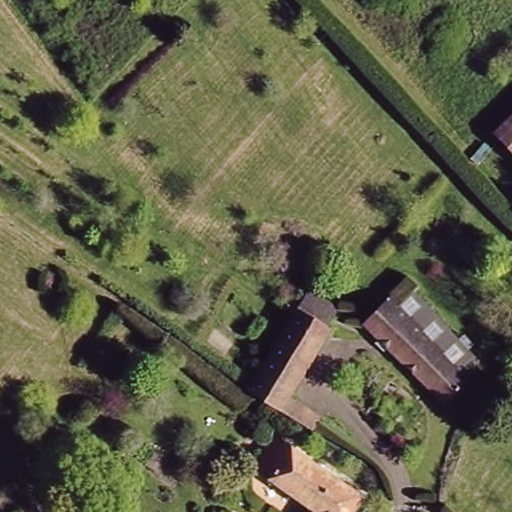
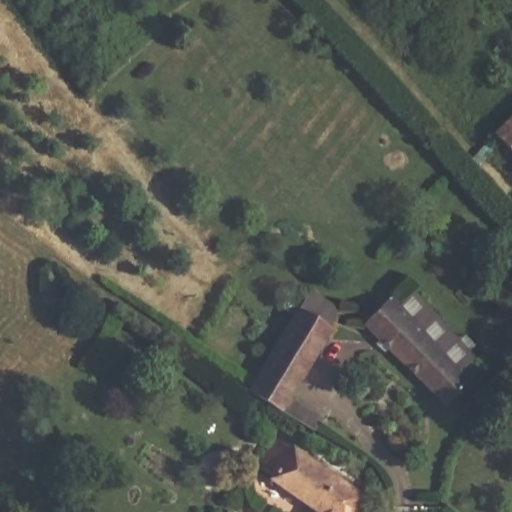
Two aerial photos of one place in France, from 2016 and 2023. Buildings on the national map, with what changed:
unchanged [(496,140),(512,124),(512,156),(496,140)]
unchanged [(292,399),(325,419),(316,433),(251,393),(300,313),(313,293),(341,309),(329,330),(332,332),(292,399)]
unchanged [(362,325),(385,301),(446,360),(454,350),(468,363),(459,373),(469,383),(447,407),(362,325)]
unchanged [(314,508),(274,481),(276,479),(259,467),(278,439),(366,496),(364,500),(356,512),(311,512),(314,508)]

